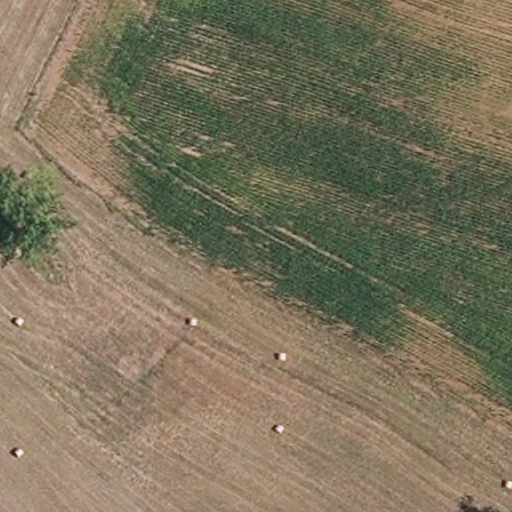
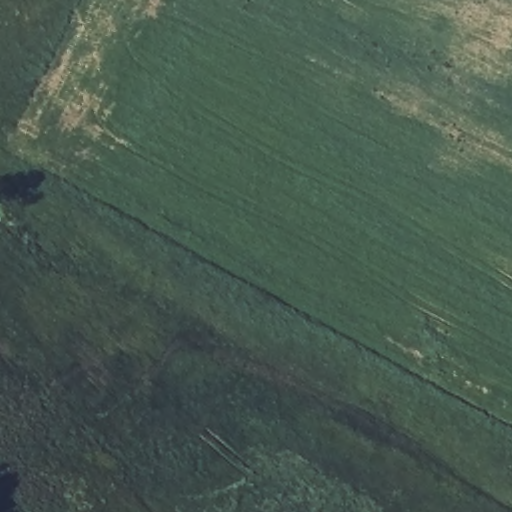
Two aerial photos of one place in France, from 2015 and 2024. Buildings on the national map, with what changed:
[]

